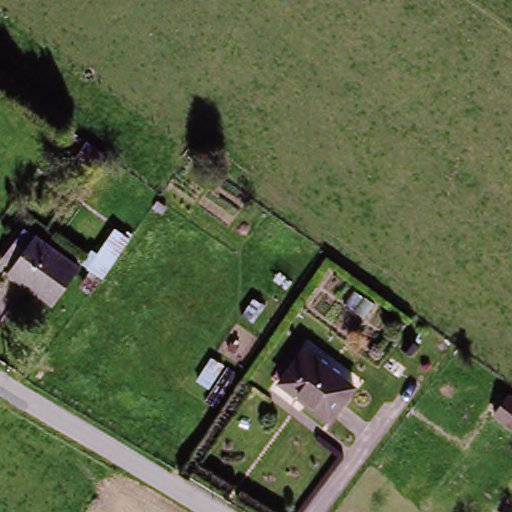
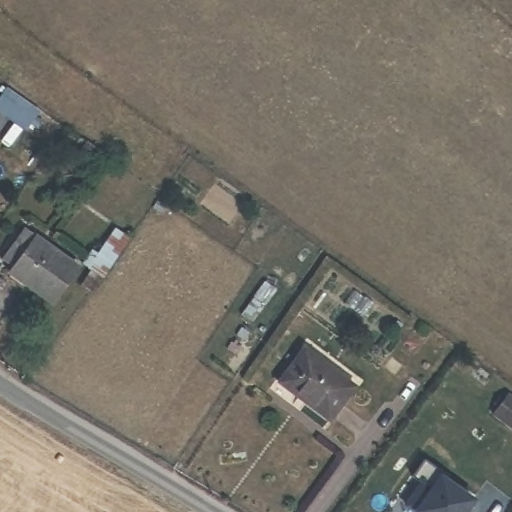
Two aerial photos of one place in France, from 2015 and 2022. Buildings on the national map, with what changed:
unchanged [(33,245),(78,279),(53,307),(11,274),(33,245)]
unchanged [(301,350),(347,383),(321,416),(276,382),(301,350)]
unchanged [(504,390),(512,396),(512,425),(491,410),(504,390)]
new [(414,480),(426,462),(449,479),(447,483),(474,502),(467,512),(414,512),(408,508),(423,486),(414,480)]

